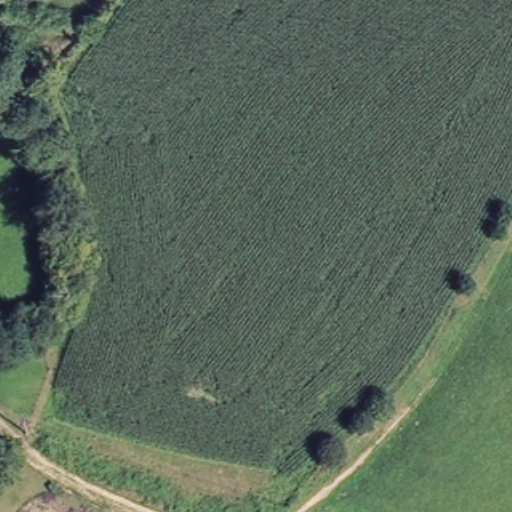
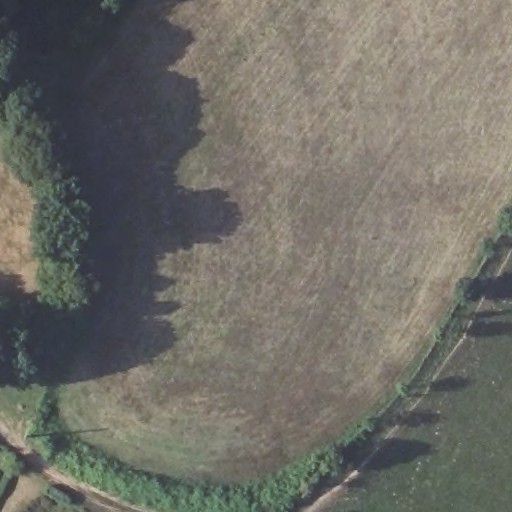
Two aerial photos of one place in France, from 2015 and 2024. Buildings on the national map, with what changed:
[]

